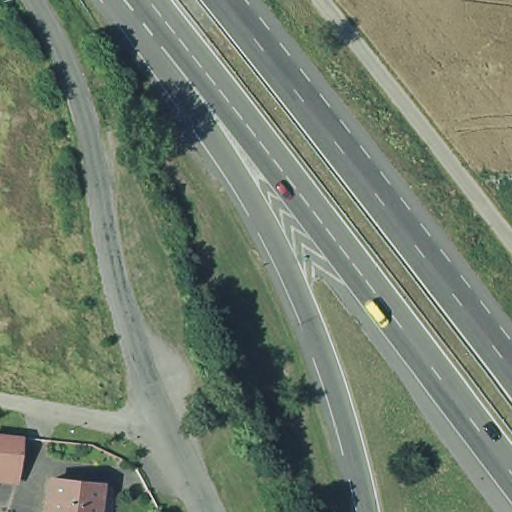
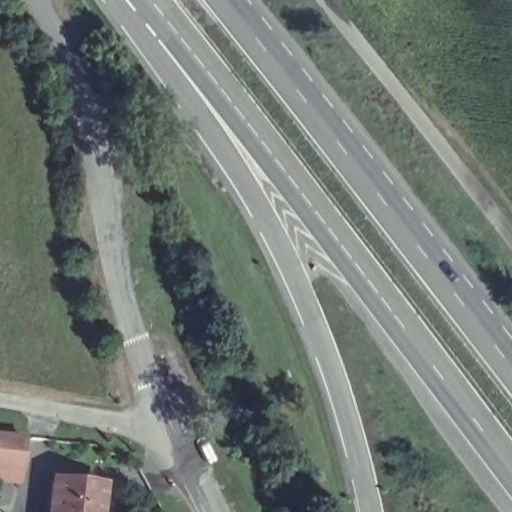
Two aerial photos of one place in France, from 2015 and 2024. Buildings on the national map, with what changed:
unchanged [(0,434),(29,437),(25,471),(23,483),(0,480),(0,434)]
unchanged [(51,512),(55,481),(103,485),(101,512),(51,512)]

